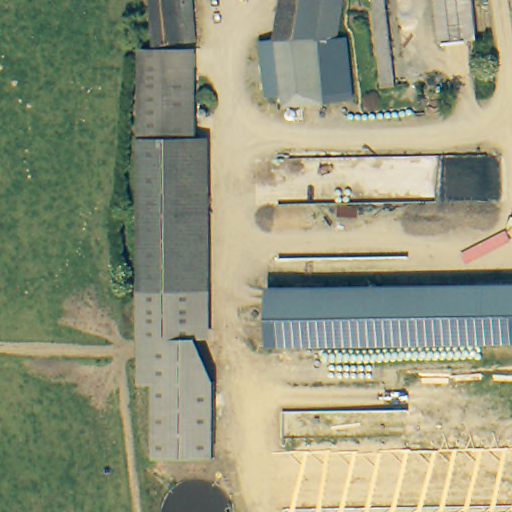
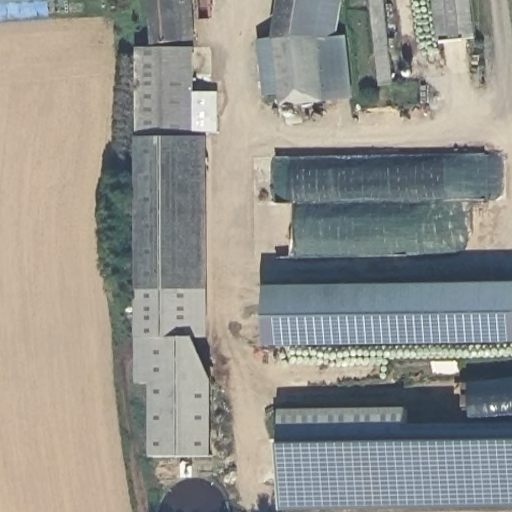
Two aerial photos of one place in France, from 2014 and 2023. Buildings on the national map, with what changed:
unchanged [(153,44),(153,0),(192,0),(193,42),(153,44)]
unchanged [(342,0),(338,38),(319,39),(278,41),(284,0),(342,0)]
unchanged [(379,0),(388,90),(376,90),(365,0),(379,0)]
unchanged [(436,0),(473,0),(477,36),(440,39),(436,0)]
unchanged [(346,37),(350,97),(322,99),(319,39),(338,38),(346,37)]
unchanged [(322,99),(279,102),(277,89),(263,90),(260,43),(278,41),(319,39),(322,99)]
unchanged [(139,137),(139,50),(193,51),(193,136),(139,137)]
unchanged [(193,338),(139,337),(139,137),(193,136),(193,338)]
new [(193,136),(208,136),(210,337),(193,338),(193,136)]
unchanged [(269,347),(268,287),(512,284),(512,343),(269,347)]
unchanged [(195,338),(214,377),(213,456),(154,456),(153,383),(140,383),(139,337),(193,338),(195,338)]
new [(406,407),(406,424),(512,423),(512,507),(283,510),(280,409),(406,407)]

